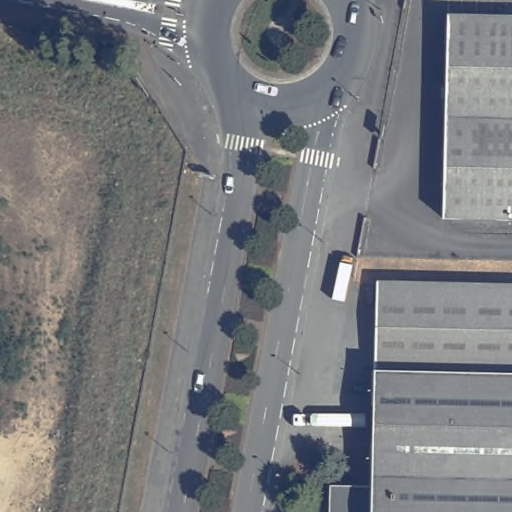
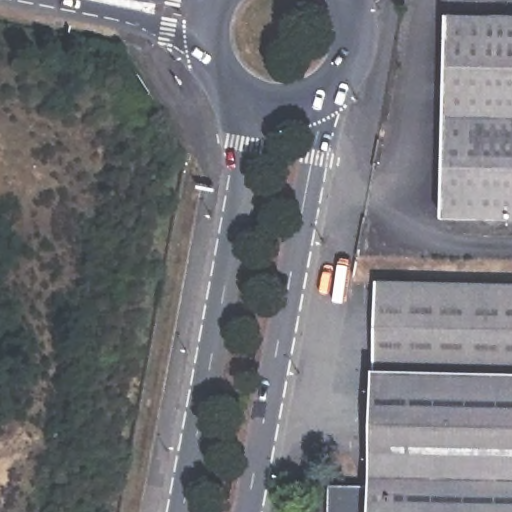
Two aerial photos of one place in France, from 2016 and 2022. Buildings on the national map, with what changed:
unchanged [(447,218),(454,15),(512,17),(512,220),(447,218)]
unchanged [(380,285),(512,289),(512,512),(335,512),(336,483),(375,484),(380,285)]

